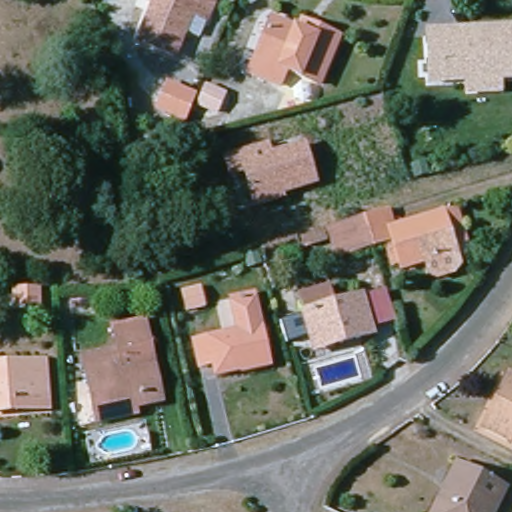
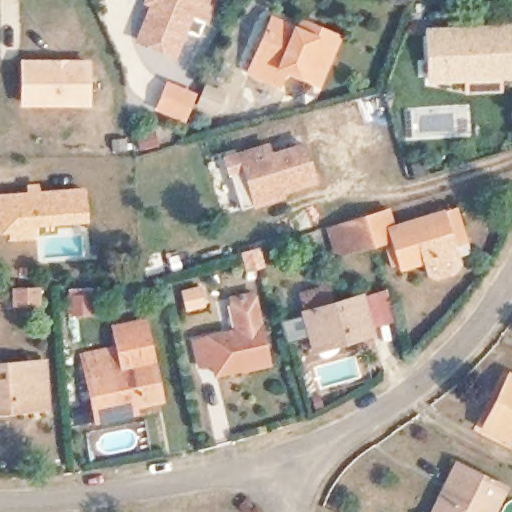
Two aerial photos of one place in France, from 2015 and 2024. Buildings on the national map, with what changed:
unchanged [(197,15),(182,55),(145,41),(159,5),(152,3),(153,0),(221,0),(213,20),(197,15)]
unchanged [(287,70),(281,85),(251,73),(273,20),(297,30),(300,22),(313,27),(341,39),(322,85),(287,70)]
unchanged [(468,75),(431,77),(428,26),(512,22),(512,73),(501,74),(502,87),(468,89),(468,75)]
new [(22,60),(87,60),(86,102),(21,102),(22,60)]
unchanged [(188,120),(160,109),(170,85),(198,97),(188,120)]
unchanged [(202,115),(193,111),(201,93),(210,96),(202,115)]
unchanged [(200,131),(197,130),(195,135),(185,130),(192,112),(205,118),(200,131)]
unchanged [(159,145),(142,149),(139,136),(156,131),(159,145)]
unchanged [(268,146),(271,155),(305,145),(316,184),(283,195),(284,198),(257,206),(247,171),(232,175),(227,159),(268,146)]
new [(86,186),(88,223),(36,226),(37,237),(8,240),(7,234),(0,234),(0,192),(86,186)]
unchanged [(369,245),(370,250),(347,258),(334,262),(324,233),(337,229),(362,222),(361,221),(381,215),(386,234),(439,218),(451,214),(461,246),(449,250),(455,270),(450,278),(433,283),(426,280),(422,267),(398,274),(396,266),(387,270),(379,242),(369,245)]
unchanged [(317,346),(301,295),(330,286),(335,305),(361,296),(373,335),(347,342),(318,351),(317,346)]
new [(97,287),(98,315),(67,316),(66,288),(97,287)]
unchanged [(40,305),(16,305),(16,289),(40,288),(40,305)]
unchanged [(205,306),(189,310),(184,293),(200,289),(205,306)]
unchanged [(243,372),(243,370),(216,375),(214,363),(200,366),(195,341),(239,331),(232,299),(255,294),(270,358),(272,366),(243,372)]
unchanged [(112,418),(92,422),(86,395),(91,395),(82,355),(115,348),(112,332),(142,326),(158,400),(131,406),(133,413),(112,418)]
unchanged [(34,410),(16,411),(15,408),(0,409),(0,366),(44,362),(46,381),(48,409),(34,410)]
unchanged [(511,375),(512,376),(512,443),(489,431),(484,428),(495,405),(511,375)]
unchanged [(494,512),(450,512),(462,487),(450,481),(458,465),(506,488),(494,512)]
unchanged [(462,487),(450,512),(434,512),(450,481),(462,487)]

